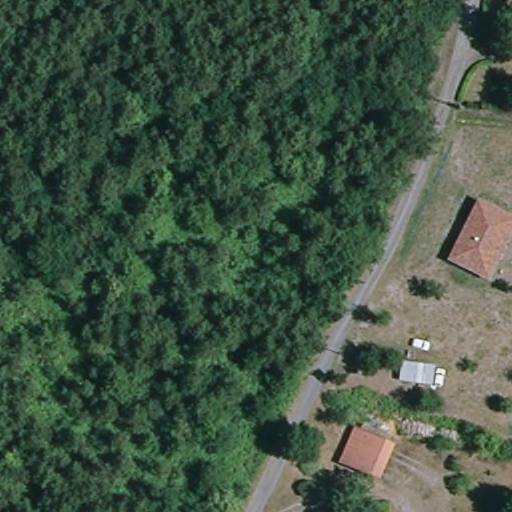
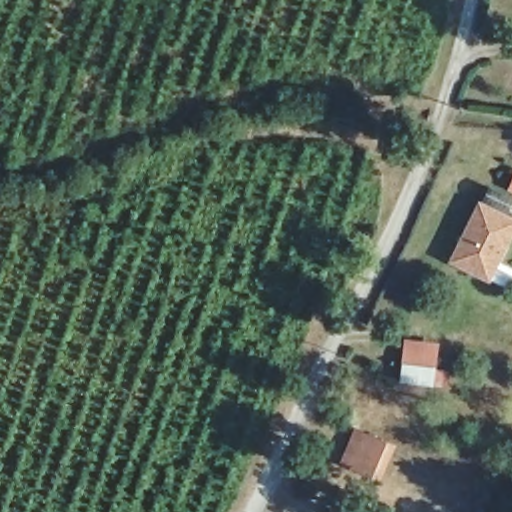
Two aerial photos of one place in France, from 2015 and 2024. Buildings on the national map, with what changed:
unchanged [(506,48),(512,50),(512,63),(505,60),(506,48)]
unchanged [(478,201),(512,217),(512,239),(490,282),(448,262),(478,201)]
new [(440,344),(435,387),(400,385),(405,340),(440,344)]
unchanged [(350,463),(342,459),(357,427),(366,431),(388,442),(373,474),(350,463)]

